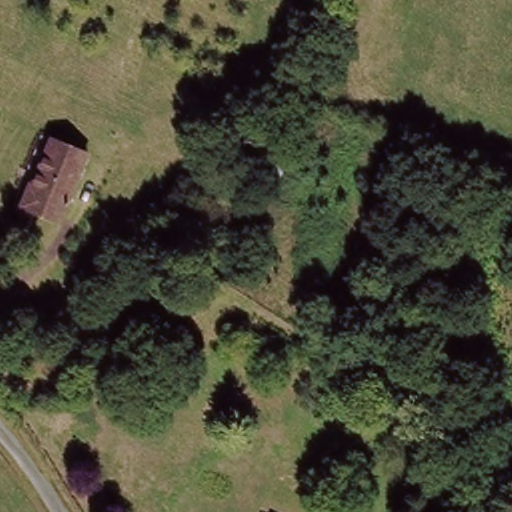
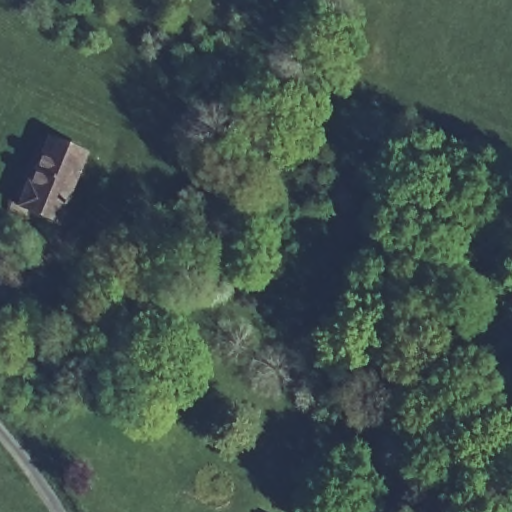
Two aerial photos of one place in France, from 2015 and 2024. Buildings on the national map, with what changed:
unchanged [(16,204),(50,138),(86,157),(52,223),(16,204)]

